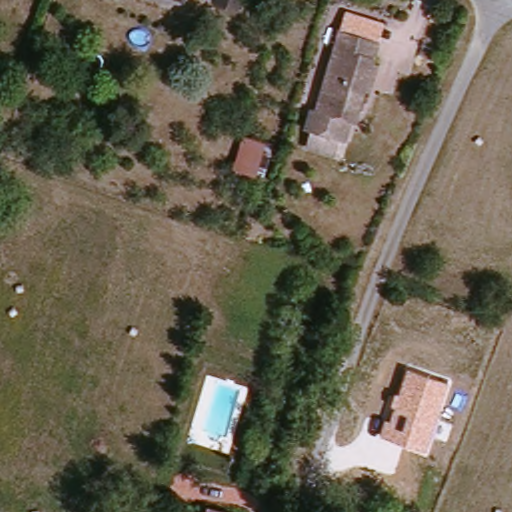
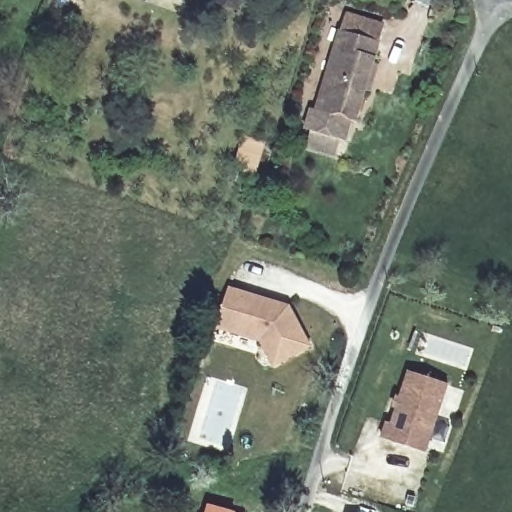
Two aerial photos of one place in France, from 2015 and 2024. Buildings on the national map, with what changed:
unchanged [(181,0),(184,0),(184,1),(181,0)]
unchanged [(251,0),(244,14),(222,4),(224,0),(251,0)]
unchanged [(383,64),(378,77),(372,90),(368,89),(356,120),(352,119),(344,138),(339,136),(334,151),(306,141),(312,125),(306,124),(314,104),(318,105),(348,27),(354,12),(392,26),(386,41),(378,61),(383,64)]
new [(271,300),(283,304),(292,307),(313,348),(276,367),(263,341),(233,332),(218,327),(223,312),(231,288),(271,300)]
unchanged [(426,451),(381,438),(404,371),(448,384),(426,451)]
unchanged [(218,499),(250,511),(249,512),(214,512),(218,499)]
new [(349,511),(352,512),(349,512),(349,511)]

